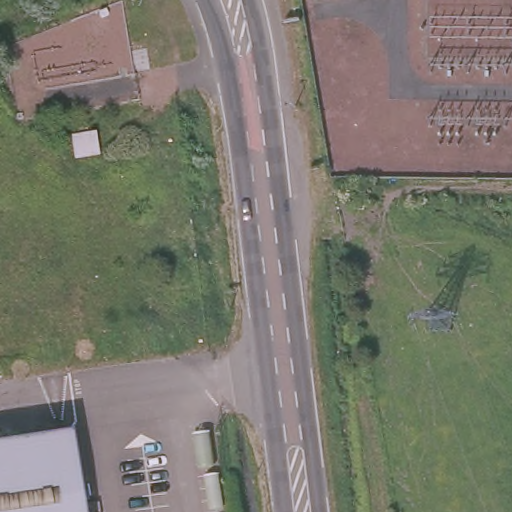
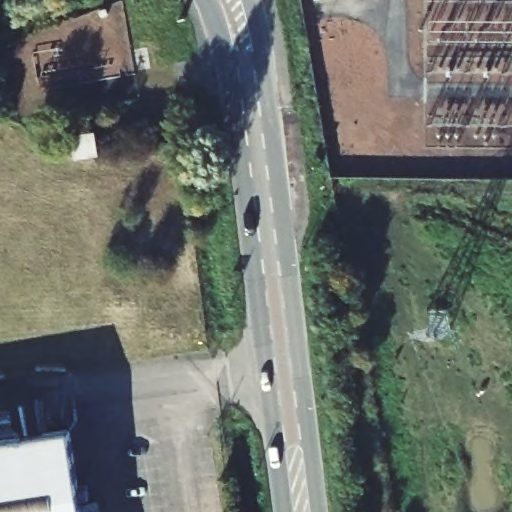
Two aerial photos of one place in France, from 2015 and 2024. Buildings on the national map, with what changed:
unchanged [(73,482),(81,481),(84,497),(76,498),(78,512),(0,512),(0,436),(64,426),(73,482)]

